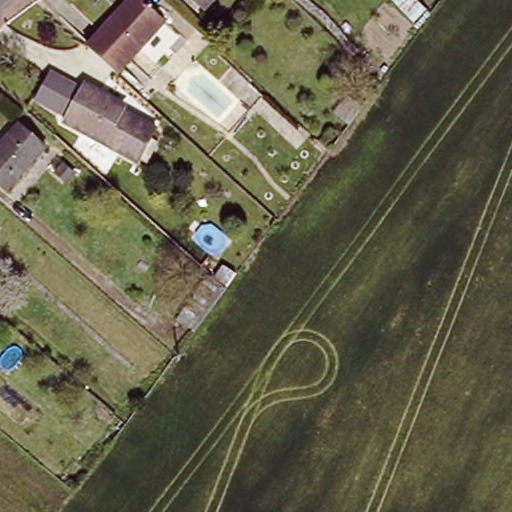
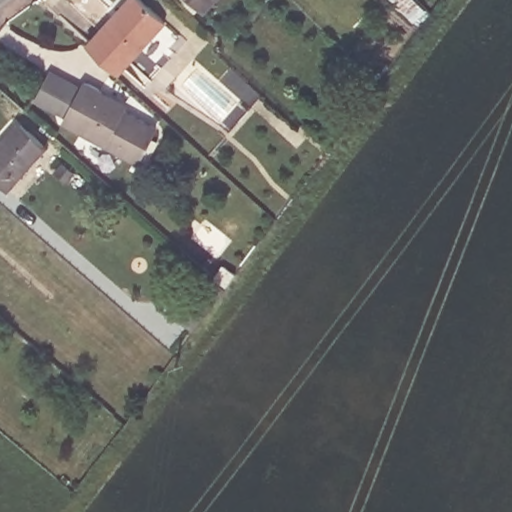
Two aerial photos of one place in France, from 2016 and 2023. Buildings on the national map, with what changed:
unchanged [(125,0),(144,0),(165,19),(117,71),(85,43),(125,0)]
unchanged [(204,4),(200,8),(192,0),(214,0),(207,7),(204,4)]
unchanged [(416,0),(427,11),(414,24),(391,0),(416,0)]
unchanged [(142,160),(136,156),(135,161),(115,150),(80,129),(35,106),(53,68),(93,89),(98,91),(96,95),(153,127),(148,136),(153,140),(142,160)]
unchanged [(348,126),(333,115),(346,99),(360,110),(348,126)]
unchanged [(43,143),(5,186),(0,181),(0,141),(18,121),(43,143)]
unchanged [(62,165),(73,175),(65,184),(54,174),(62,165)]
unchanged [(193,334),(177,320),(208,279),(210,276),(226,290),(193,334)]

